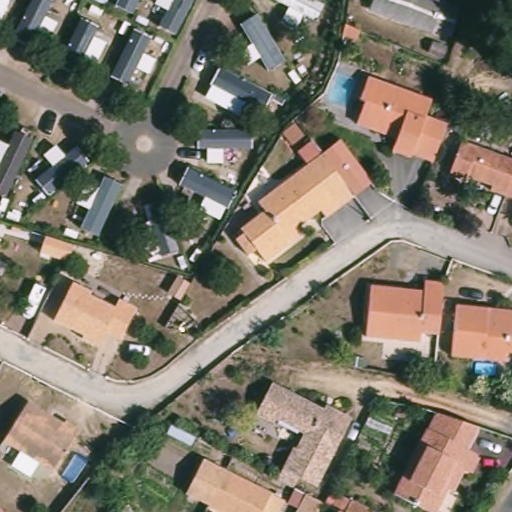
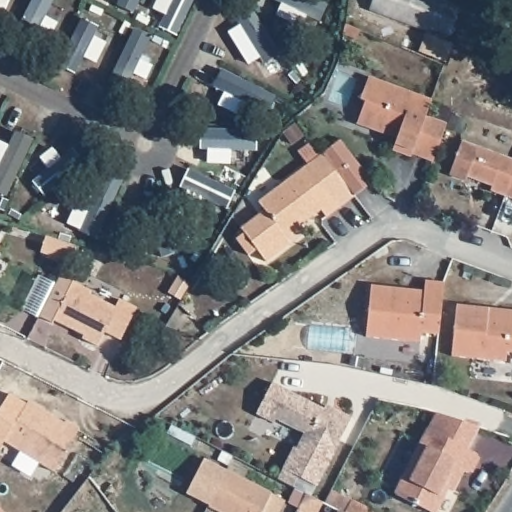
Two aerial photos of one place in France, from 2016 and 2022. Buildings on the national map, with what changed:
unchanged [(448,36),(372,9),(375,0),(427,0),(458,11),(448,36)]
unchanged [(357,36),(353,45),(340,40),(343,31),(357,36)]
unchanged [(357,126),(366,106),(361,103),(370,81),(431,106),(424,126),(441,134),(442,135),(429,166),(410,159),(409,162),(391,155),(396,144),(378,136),(357,126)]
unchanged [(322,158),(308,168),(295,150),(310,139),(320,153),(340,137),(372,184),(350,197),(322,158)]
unchanged [(512,165),(512,201),(488,192),(488,189),(483,187),(478,185),(464,180),(462,183),(446,178),(458,146),(494,158),(500,161),(512,165)]
unchanged [(327,219),(322,212),(308,221),(305,216),(282,232),(290,243),(265,260),(255,248),(247,253),(236,236),(244,231),(241,226),(266,209),(260,201),(322,158),(353,201),(327,219)]
unchanged [(71,243),(64,259),(40,248),(46,235),(71,243)]
unchanged [(99,290),(96,294),(122,308),(126,300),(143,309),(126,340),(110,331),(103,345),(88,337),(90,334),(60,318),(81,280),(99,290)]
unchanged [(397,290),(396,295),(418,297),(420,282),(438,284),(433,335),(415,333),(415,343),(360,337),(365,287),(397,290)]
unchanged [(512,315),(512,356),(502,356),(501,366),(446,360),(451,309),(483,312),(505,314),(512,315)]
unchanged [(317,487),(298,477),(293,487),(277,479),(291,446),(295,449),(303,433),(275,418),(273,423),(256,413),(271,384),(329,415),(332,409),(351,419),(317,487)]
unchanged [(65,424),(67,421),(81,430),(52,471),(5,438),(31,400),(65,424)]
unchanged [(443,495),(435,512),(414,512),(389,499),(422,434),(431,417),(475,432),(463,455),(474,461),(465,480),(460,477),(450,497),(443,495)]
unchanged [(207,508),(208,506),(185,494),(203,461),(270,495),(283,503),(278,512),(216,512),(207,508)]

